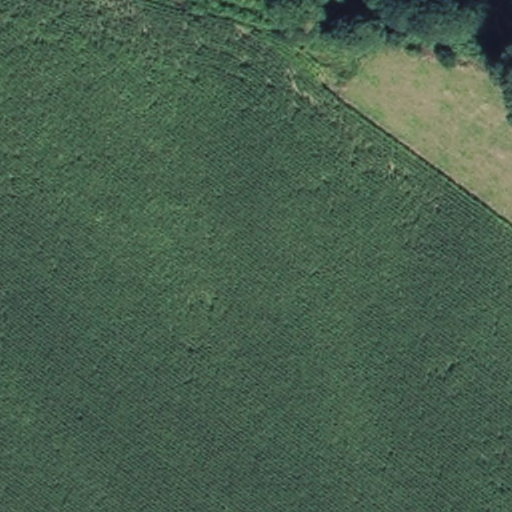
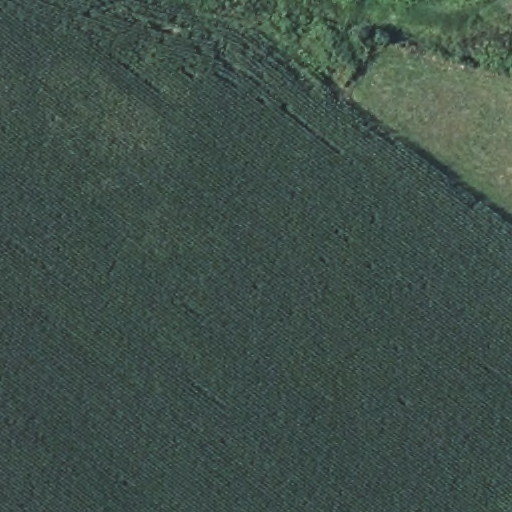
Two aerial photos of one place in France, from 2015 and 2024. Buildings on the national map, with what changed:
[]

